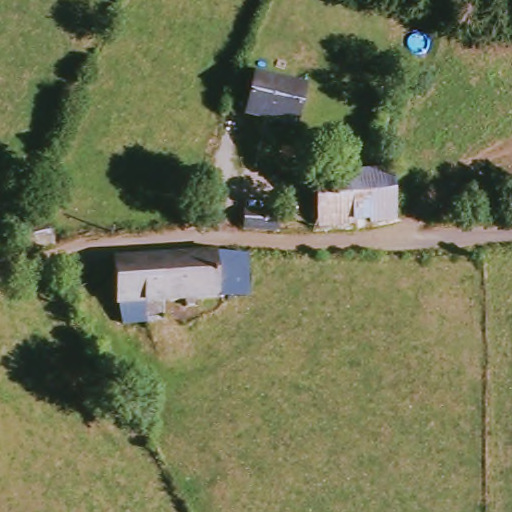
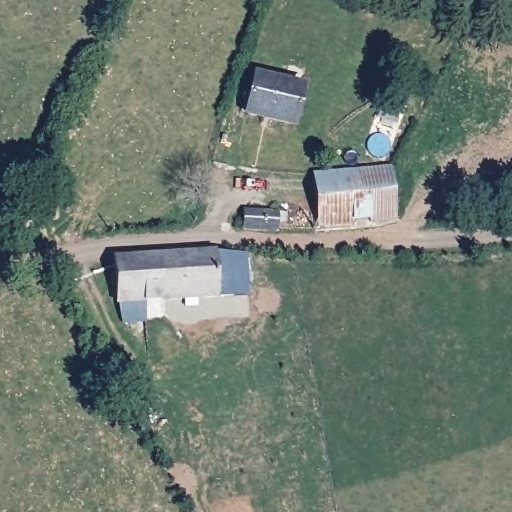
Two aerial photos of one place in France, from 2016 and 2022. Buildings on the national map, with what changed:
unchanged [(295,127),(243,118),(253,79),(302,88),(295,127)]
unchanged [(317,227),(310,174),(389,161),(397,215),(317,227)]
unchanged [(247,232),(250,211),(283,213),(282,232),(247,232)]
unchanged [(65,220),(65,245),(20,249),(31,224),(65,220)]
unchanged [(249,292),(169,299),(147,300),(149,326),(120,328),(112,257),(220,246),(245,247),(249,292)]

